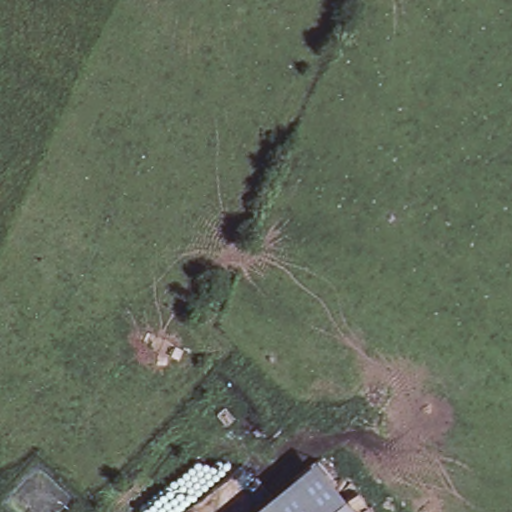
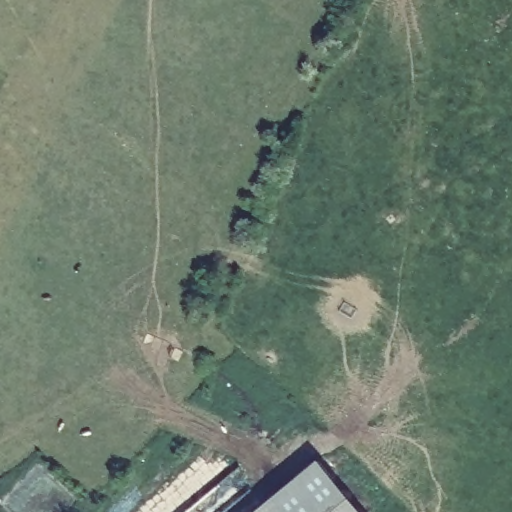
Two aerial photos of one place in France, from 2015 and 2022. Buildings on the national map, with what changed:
unchanged [(363,512),(252,512),(317,457),(363,512)]

